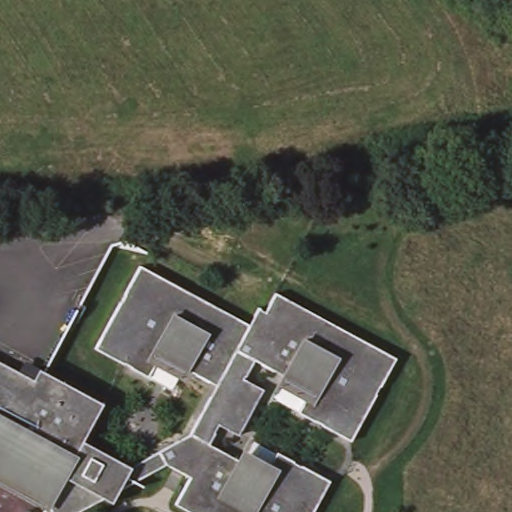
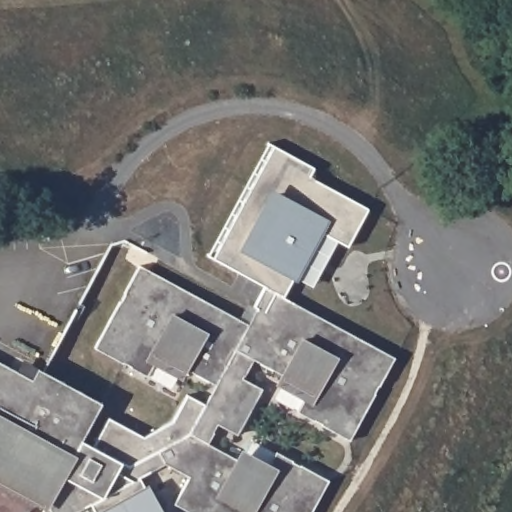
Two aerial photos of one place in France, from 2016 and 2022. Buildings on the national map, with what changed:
new [(277,291),(269,310),(260,305),(255,303),(263,287),(209,256),(268,143),(315,167),(311,176),(368,207),(349,245),(339,240),(312,287),(294,278),(284,295),(277,291)]
unchanged [(0,482),(0,355),(35,375),(39,365),(106,403),(85,440),(131,461),(193,430),(217,389),(188,373),(183,380),(155,366),(149,374),(99,347),(144,266),(251,321),(260,305),(269,310),(277,291),(401,356),(355,440),(302,410),(309,397),(280,384),(284,378),(256,362),(247,376),(267,386),(243,433),(221,424),(213,441),(244,456),(248,448),(271,460),(279,450),(334,476),(316,512),(189,512),(178,505),(193,478),(169,464),(123,486),(115,502),(104,496),(76,512),(42,512),(49,508),(0,482)]
new [(193,430),(131,461),(96,445),(109,418),(144,436),(173,420),(186,395),(208,405),(193,430)]
new [(149,483),(164,512),(95,512),(90,504),(104,496),(115,502),(123,486),(140,478),(144,485),(149,483)]

